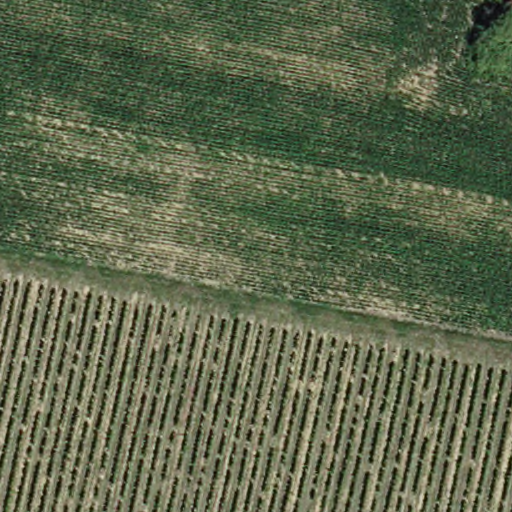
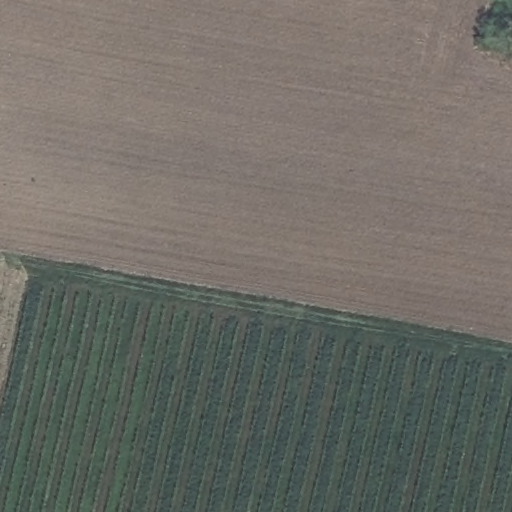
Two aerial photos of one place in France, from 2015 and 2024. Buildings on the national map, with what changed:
[]

